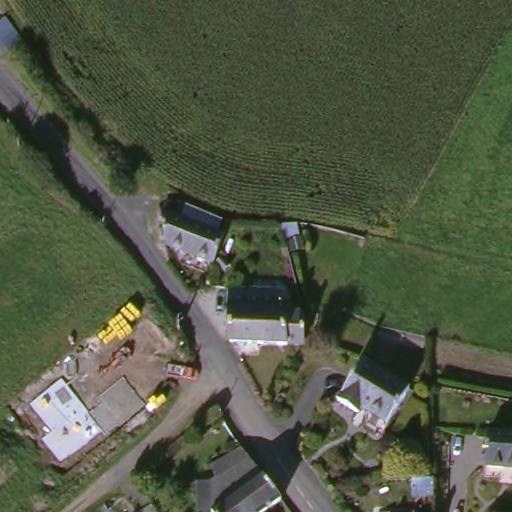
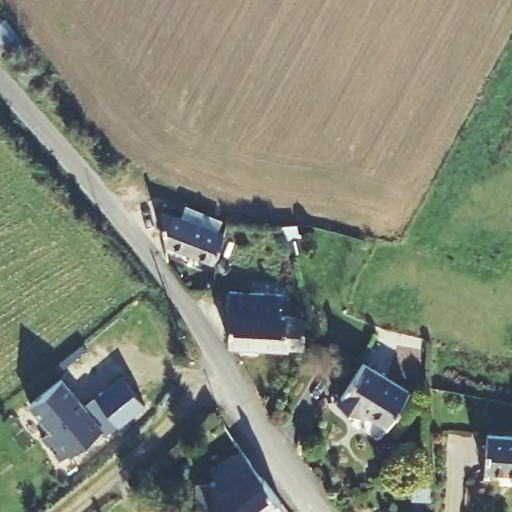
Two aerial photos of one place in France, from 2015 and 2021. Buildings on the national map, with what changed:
unchanged [(159,246),(157,209),(170,201),(229,225),(219,266),(159,246)]
unchanged [(282,287),(285,314),(232,321),(219,323),(217,311),(226,310),(224,295),(282,287)]
unchanged [(285,314),(305,312),(310,348),(235,353),(234,340),(232,321),(285,314)]
unchanged [(415,390),(385,430),(342,398),(373,358),(415,390)]
new [(77,399),(89,391),(95,399),(121,377),(145,404),(119,426),(117,424),(105,433),(101,429),(71,454),(70,452),(61,460),(42,439),(52,431),(30,404),(59,381),(77,399)]
unchanged [(512,473),(490,473),(488,434),(512,434),(512,473)]
unchanged [(242,455),(277,510),(275,512),(216,512),(216,507),(215,498),(215,490),(212,481),(210,475),(242,455)]

